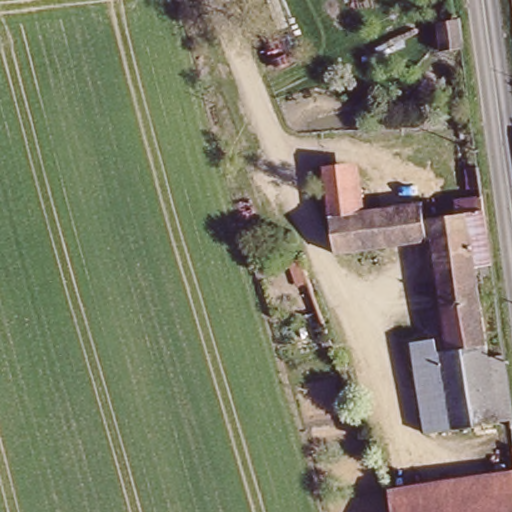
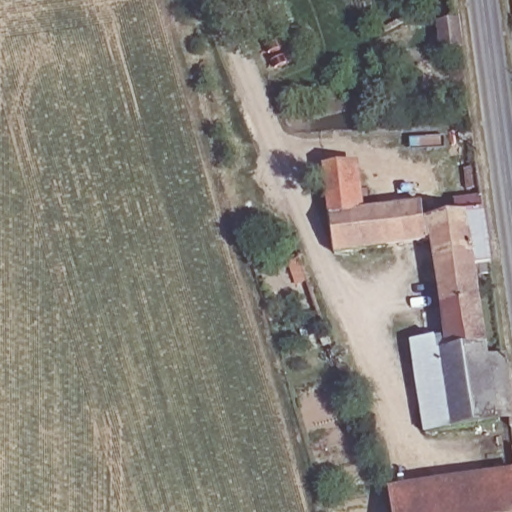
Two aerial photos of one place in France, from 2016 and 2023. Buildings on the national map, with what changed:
unchanged [(354,155),(361,204),(330,207),(322,160),(354,155)]
unchanged [(425,195),(426,210),(460,206),(458,190),(481,187),(494,276),(477,278),(490,361),(505,358),(512,404),(512,425),(425,437),(408,336),(443,332),(430,234),(335,248),(330,207),(361,204),(425,195)]
unchanged [(512,512),(396,512),(395,505),(392,487),(512,470),(512,512)]

